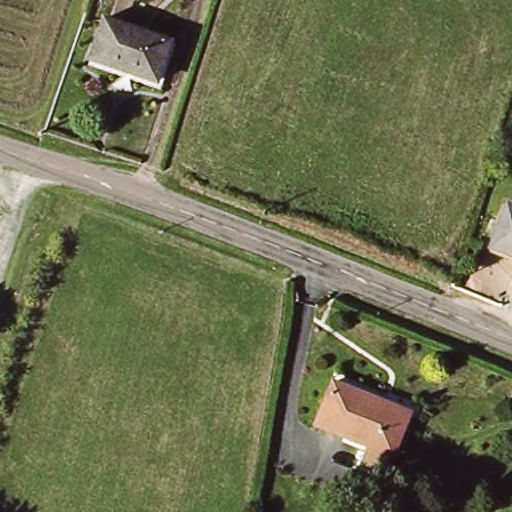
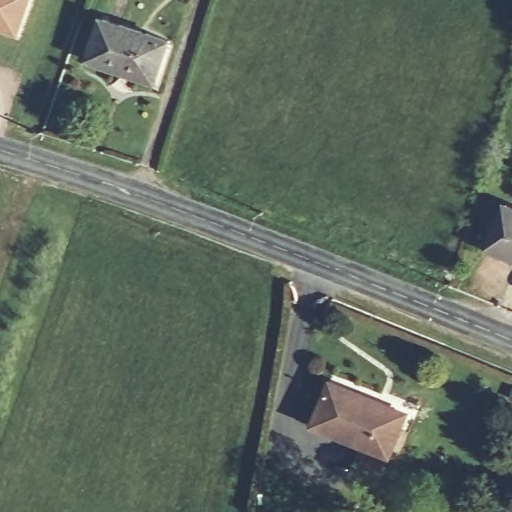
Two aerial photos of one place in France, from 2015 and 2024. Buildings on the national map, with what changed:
new [(0,32),(0,0),(33,0),(20,39),(0,32)]
unchanged [(156,84),(97,65),(112,26),(170,47),(156,84)]
unchanged [(493,252),(510,213),(512,213),(512,259),(493,252)]
unchanged [(364,469),(371,451),(317,429),(335,385),(382,404),(378,413),(407,424),(407,426),(393,460),(392,459),(384,477),(364,469)]

